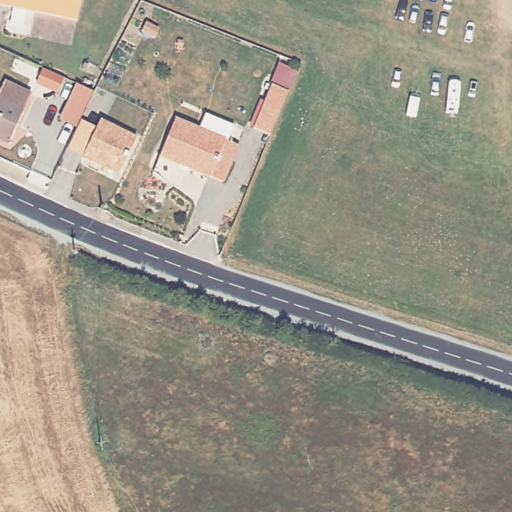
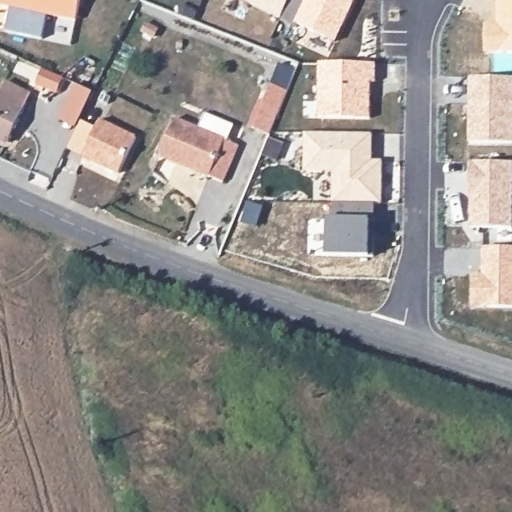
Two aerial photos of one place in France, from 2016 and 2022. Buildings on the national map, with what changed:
unchanged [(0,7),(0,0),(86,0),(82,21),(0,7)]
new [(356,0),(336,42),(244,0),(356,0)]
new [(500,19),(499,0),(512,0),(512,55),(487,56),(486,20),(500,19)]
new [(46,15),(43,36),(6,30),(10,9),(46,15)]
new [(319,62),(376,62),(376,80),(369,80),(370,119),(318,118),(319,62)]
new [(512,76),(512,141),(466,141),(469,77),(512,76)]
unchanged [(250,122),(280,78),(294,89),(287,99),(264,132),(250,122)]
unchanged [(6,141),(0,138),(0,83),(1,80),(29,92),(6,141)]
unchanged [(90,102),(81,120),(96,127),(100,119),(135,137),(115,175),(66,150),(73,135),(56,128),(73,94),(90,102)]
unchanged [(223,176),(170,145),(189,112),(242,144),(223,176)]
new [(304,132),(371,134),(371,160),(383,160),(382,202),(375,203),(370,257),(327,256),(331,172),(303,171),(304,132)]
new [(512,161),(512,226),(469,226),(469,161),(512,161)]

